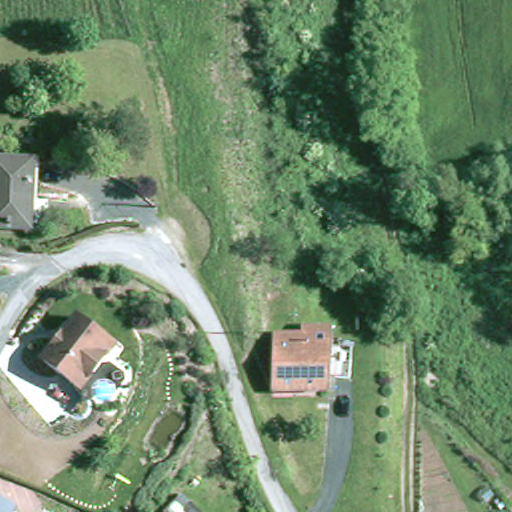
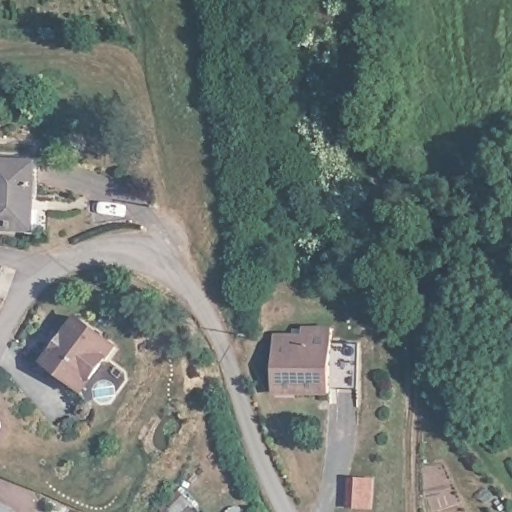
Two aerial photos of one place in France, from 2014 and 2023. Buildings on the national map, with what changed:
unchanged [(24,230),(0,229),(0,162),(29,164),(24,230)]
unchanged [(72,383),(42,360),(75,317),(106,339),(112,343),(102,355),(87,375),(78,387),(72,383)]
unchanged [(337,383),(326,384),(327,398),(305,400),(272,402),(270,347),(293,346),(293,336),(324,336),(325,353),(344,351),(346,371),(347,382),(337,383)]
new [(347,476),(375,478),(374,510),(345,508),(347,476)]
unchanged [(201,512),(185,512),(190,505),(201,512)]
unchanged [(9,510),(7,512),(0,512),(0,506),(9,510)]

